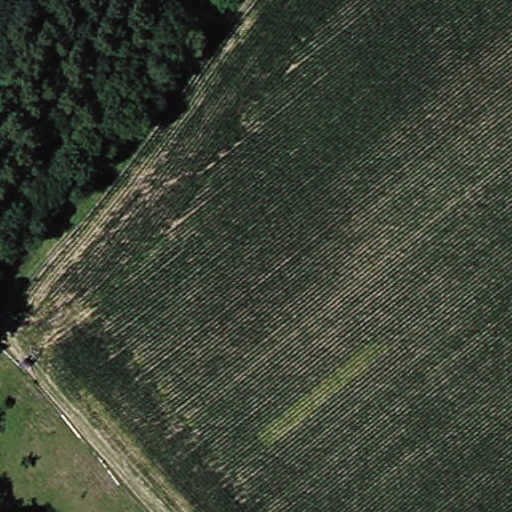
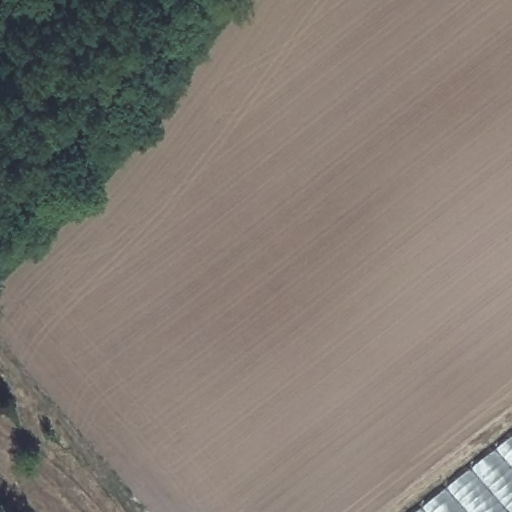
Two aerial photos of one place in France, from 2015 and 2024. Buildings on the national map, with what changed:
new [(512,439),(512,512),(419,512),(512,439)]

